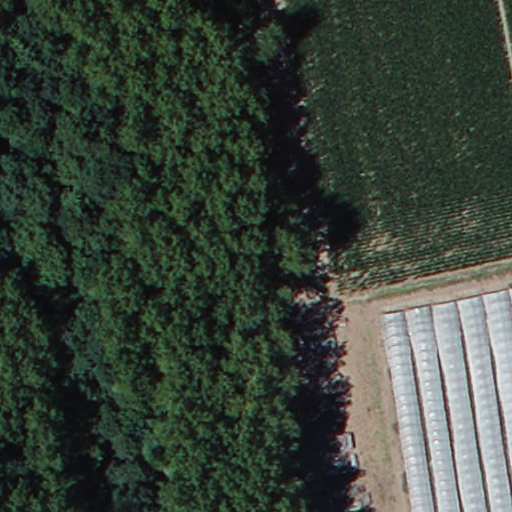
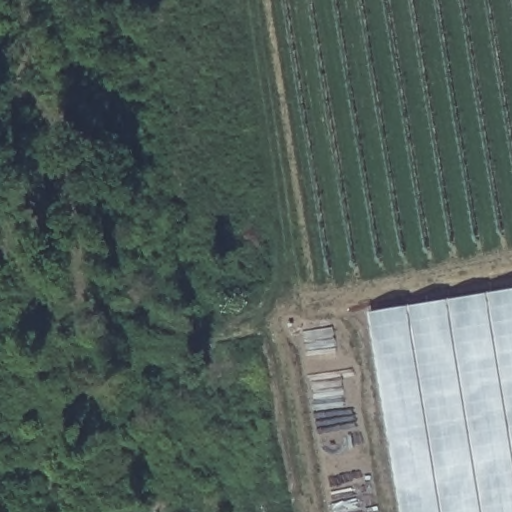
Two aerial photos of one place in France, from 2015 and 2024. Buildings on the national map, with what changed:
unchanged [(512,289),(512,512),(421,512),(389,315),(512,289)]

